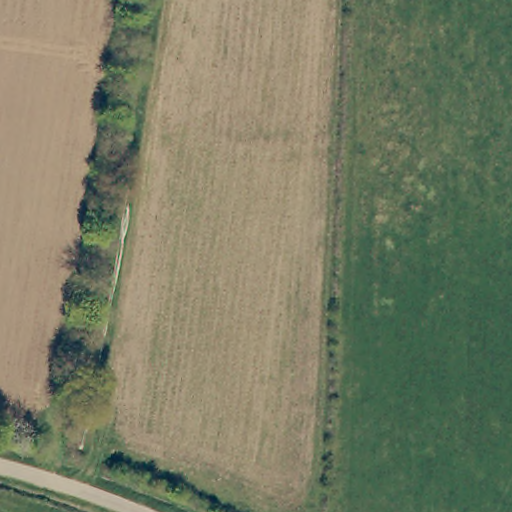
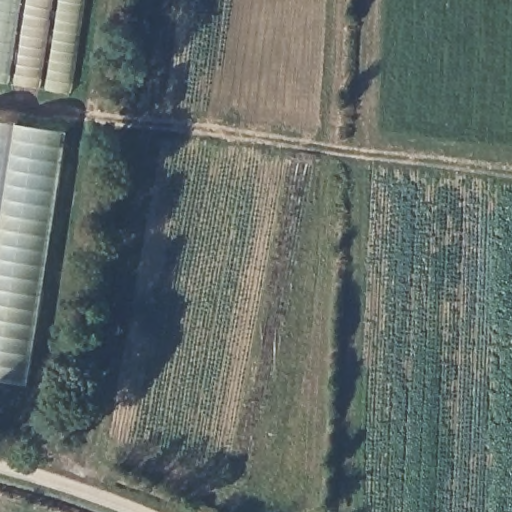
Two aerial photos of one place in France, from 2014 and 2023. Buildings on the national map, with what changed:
new [(0,84),(0,0),(83,0),(69,95),(0,84)]
new [(25,386),(0,382),(0,122),(65,133),(25,386)]

